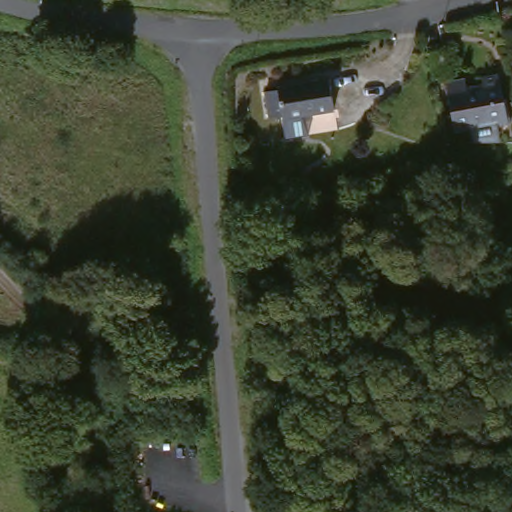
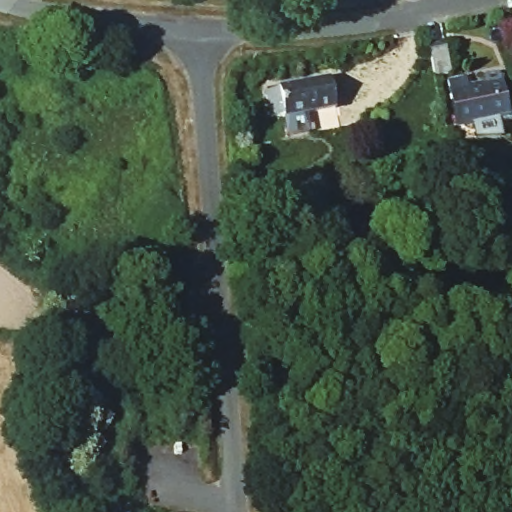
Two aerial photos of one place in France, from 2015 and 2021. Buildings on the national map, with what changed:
unchanged [(416,54),(435,49),(443,79),(424,84),(416,54)]
unchanged [(278,115),(274,101),(284,99),(279,81),(330,73),(338,108),(278,115)]
unchanged [(511,118),(461,129),(453,92),(503,81),(511,118)]

